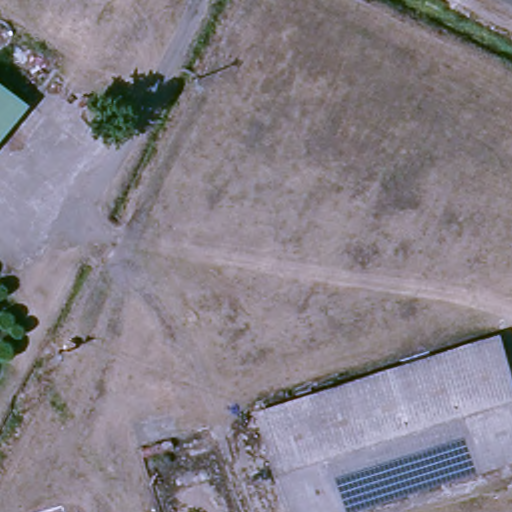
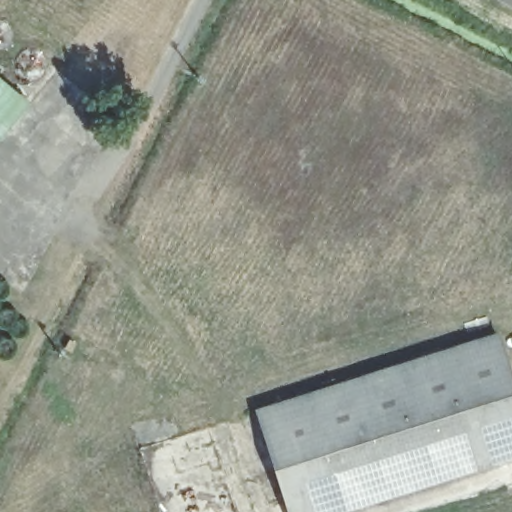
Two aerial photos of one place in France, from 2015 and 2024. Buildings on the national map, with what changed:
unchanged [(29,101),(0,137),(0,78),(29,101)]
unchanged [(512,448),(330,512),(293,512),(258,411),(496,329),(512,374),(512,448)]

